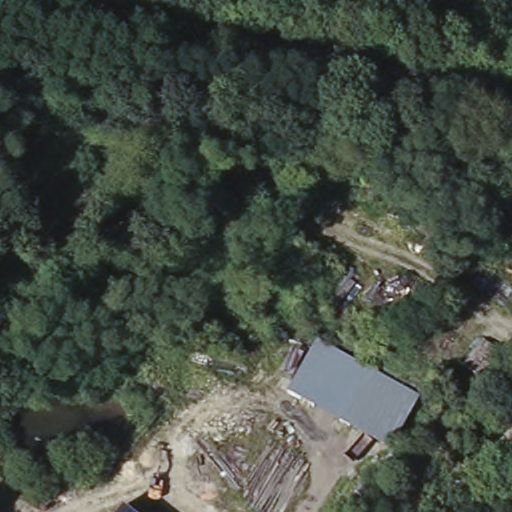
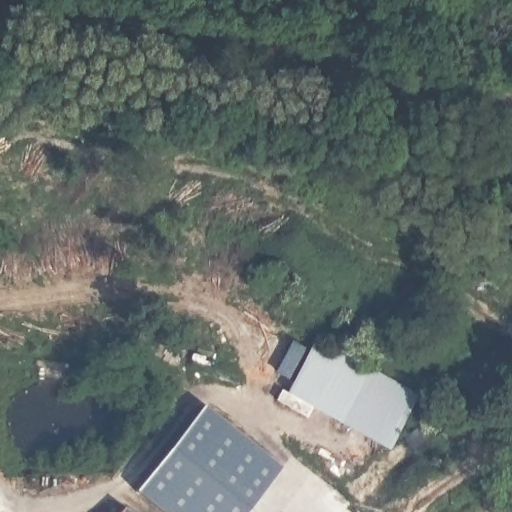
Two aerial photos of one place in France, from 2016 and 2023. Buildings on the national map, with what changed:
unchanged [(391,449),(286,395),(316,337),(419,393),(391,449)]
new [(210,411),(283,476),(255,512),(162,512),(140,493),(210,411)]
unchanged [(130,502),(142,512),(122,512),(130,502)]

